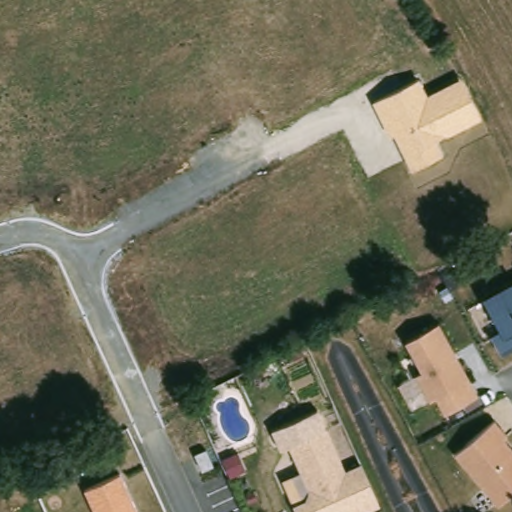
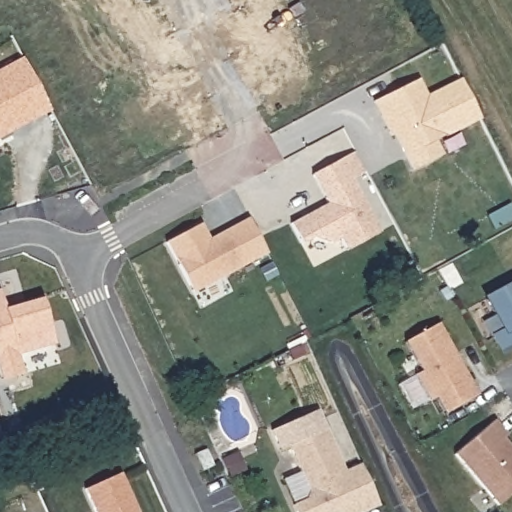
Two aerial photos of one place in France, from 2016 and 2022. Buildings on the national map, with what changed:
new [(50,111),(0,138),(0,70),(23,58),(50,111)]
unchanged [(420,79),(428,94),(461,78),(481,120),(438,140),(445,154),(412,171),(394,133),(389,136),(374,104),(420,79)]
new [(363,171),(353,177),(380,233),(347,251),(340,238),(329,244),(313,238),(301,243),(290,222),(326,204),(311,174),(355,151),(363,171)]
new [(210,237),(250,216),(268,254),(192,292),(165,240),(200,223),(210,237)]
unchanged [(512,353),(501,358),(489,335),(499,328),(481,297),(512,278),(512,353)]
new [(7,308),(42,298),(55,344),(17,354),(24,376),(2,380),(0,374),(0,290),(7,308)]
unchanged [(476,395),(443,414),(405,341),(437,323),(476,395)]
unchanged [(381,505),(365,512),(299,512),(295,502),(309,497),(310,489),(291,443),(282,447),(275,430),(321,408),(330,426),(347,468),(363,463),(381,505)]
unchanged [(512,445),(512,492),(496,505),(453,454),(492,421),(512,445)]
unchanged [(124,473),(138,512),(96,512),(86,488),(124,473)]

